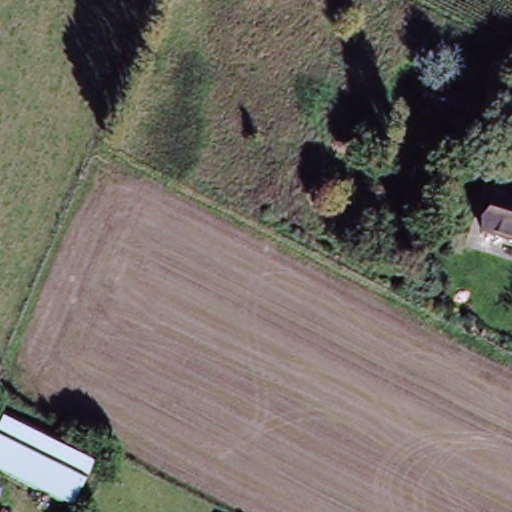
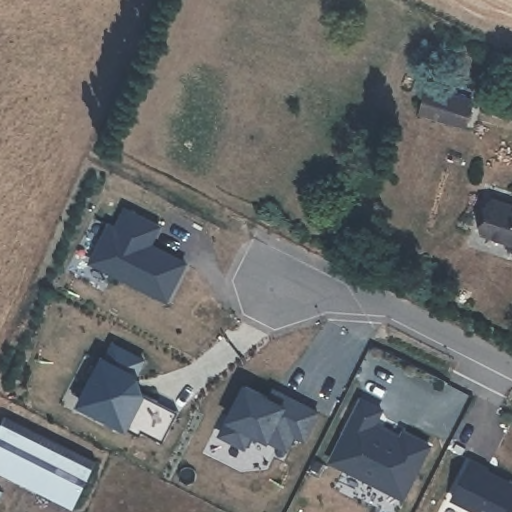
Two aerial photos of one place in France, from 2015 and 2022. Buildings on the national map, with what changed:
unchanged [(467,124),(421,109),(429,83),(474,98),(467,124)]
unchanged [(480,220),(496,191),(512,200),(512,236),(480,220)]
new [(114,233),(124,213),(158,230),(148,249),(156,253),(184,267),(165,304),(89,266),(108,229),(114,233)]
new [(101,362),(104,364),(112,349),(142,364),(132,384),(135,394),(178,416),(162,446),(141,435),(139,440),(78,409),(101,362)]
new [(269,403),(273,395),(287,402),(317,417),(304,443),(294,439),(287,454),(253,437),(245,452),(221,440),(245,392),(269,403)]
new [(382,414),(374,430),(379,433),(401,444),(404,437),(429,450),(404,502),(331,466),(362,405),(382,414)]
unchanged [(0,470),(0,428),(6,416),(96,461),(74,507),(0,470)]
new [(500,478),(508,483),(512,484),(512,512),(478,512),(452,499),(471,461),(486,468),(484,471),(500,478)]

